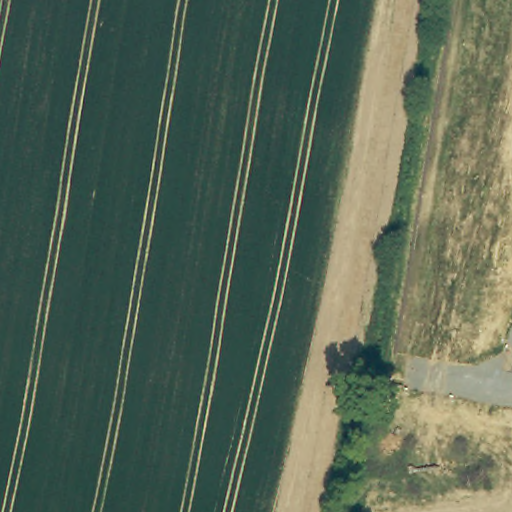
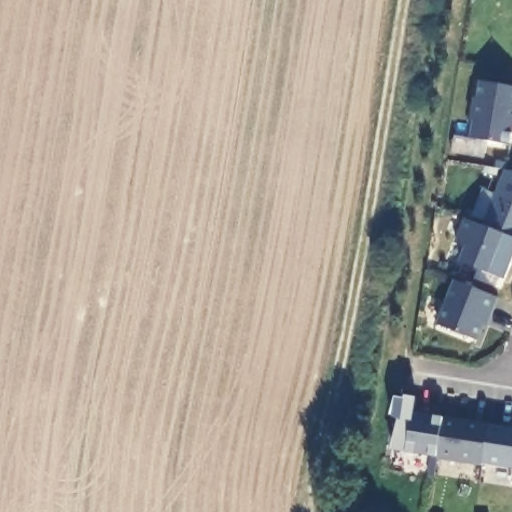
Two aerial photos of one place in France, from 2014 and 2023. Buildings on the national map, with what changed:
unchanged [(470,121),(475,98),(477,99),(480,82),(512,87),(512,146),(471,139),(474,122),(470,121)]
new [(465,247),(456,244),(465,219),(483,225),(505,170),(512,172),(512,266),(506,280),(460,262),(465,247)]
new [(437,325),(455,280),(499,298),(488,327),(485,325),(480,341),(437,325)]
new [(482,466),(390,450),(405,396),(418,397),(415,413),(511,426),(512,427),(512,469),(482,464),(482,466)]

